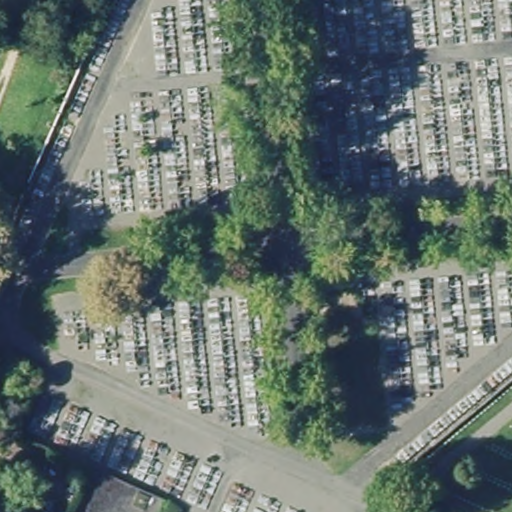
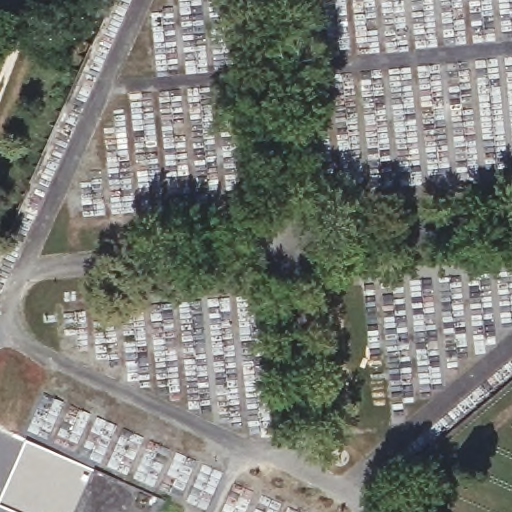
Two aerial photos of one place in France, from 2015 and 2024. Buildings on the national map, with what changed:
new [(92,469),(74,512),(12,512),(0,506),(0,493),(25,438),(92,469)]
unchanged [(160,512),(78,512),(96,471),(165,501),(160,512)]

